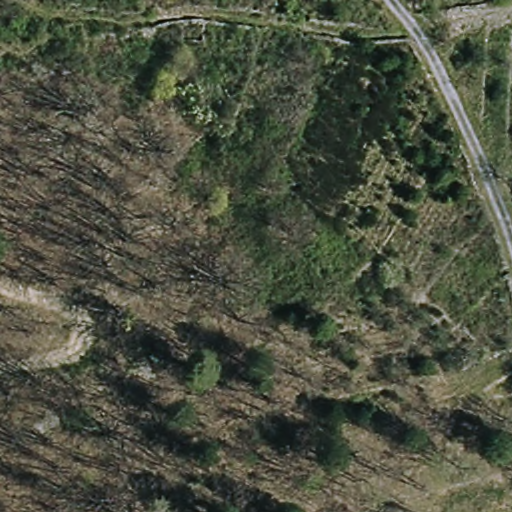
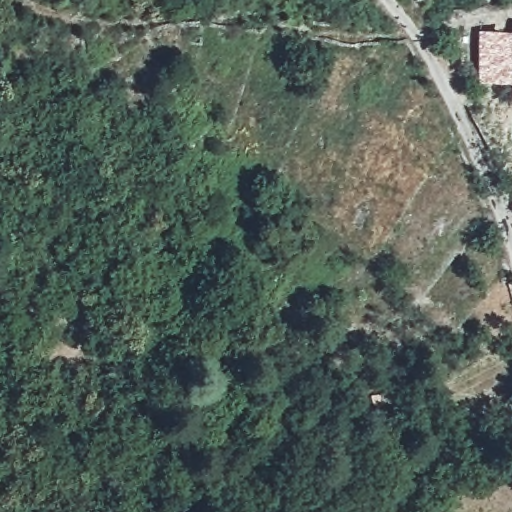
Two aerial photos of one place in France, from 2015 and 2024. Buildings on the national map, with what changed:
demolished [(417,20),(414,1),(423,0),(441,0),(444,16),(419,21),(417,20)]
new [(508,82),(475,83),(477,30),(509,30),(510,35),(512,35),(512,64),(508,64),(508,82)]

